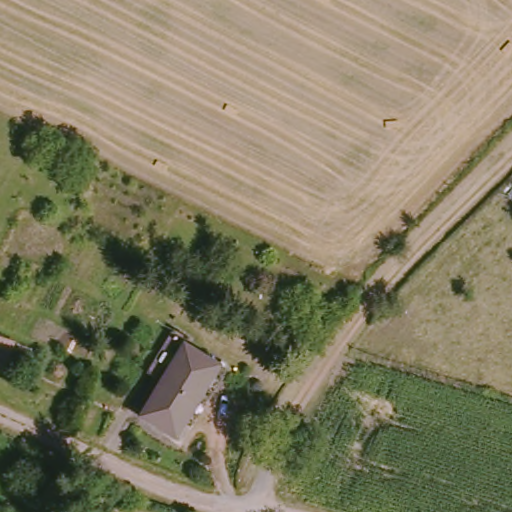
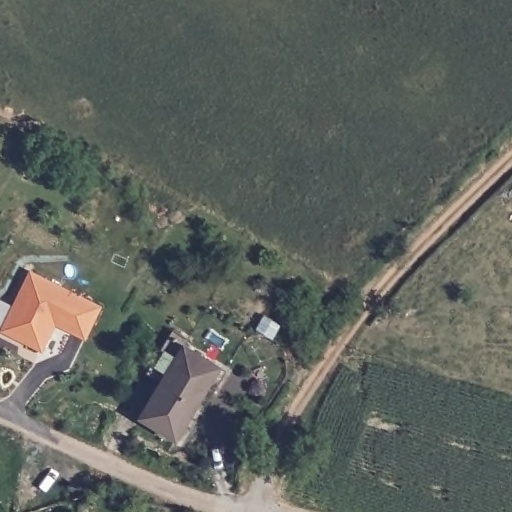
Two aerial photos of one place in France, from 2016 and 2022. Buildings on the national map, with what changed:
new [(29,271),(102,306),(87,339),(55,326),(44,351),(1,330),(29,271)]
demolished [(0,369),(0,337),(1,335),(22,344),(9,372),(0,369)]
unchanged [(184,346),(180,353),(220,378),(209,398),(202,394),(174,442),(139,422),(160,387),(144,377),(167,336),(184,346)]

